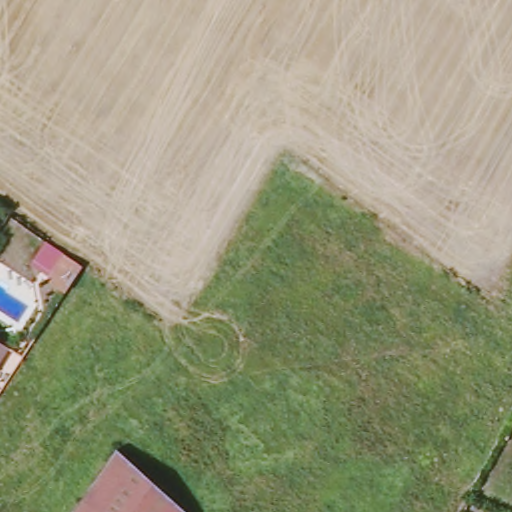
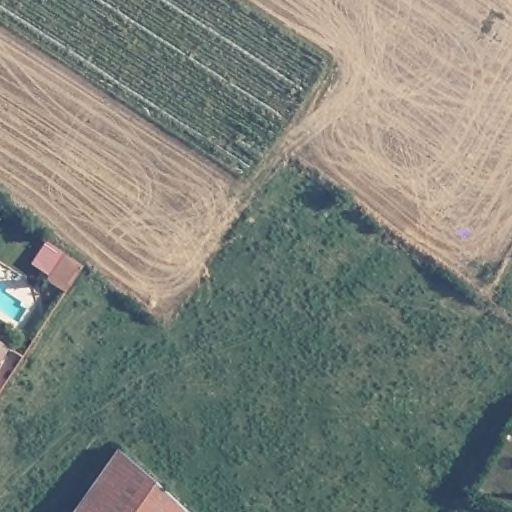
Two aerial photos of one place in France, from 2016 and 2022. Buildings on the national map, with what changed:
unchanged [(40,280),(57,252),(74,265),(57,292),(40,280)]
unchanged [(0,360),(0,347),(6,351),(0,360)]
unchanged [(75,512),(118,452),(186,512),(75,512)]

